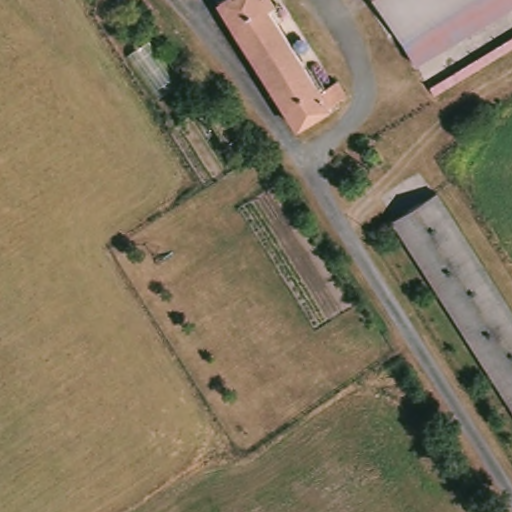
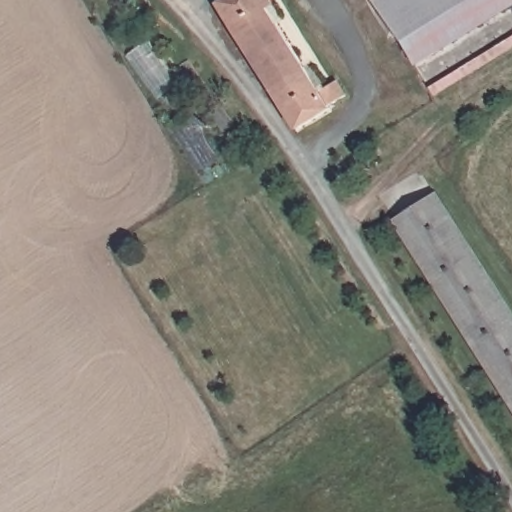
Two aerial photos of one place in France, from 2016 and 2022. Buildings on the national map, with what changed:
unchanged [(275,0),(270,3),(321,89),(333,81),(343,98),(330,105),(338,115),(301,136),(218,4),(225,0),(275,0)]
unchanged [(495,0),(407,46),(378,0),(495,0)]
unchanged [(407,46),(495,0),(512,0),(512,25),(424,72),(407,46)]
unchanged [(433,88),(512,39),(512,51),(436,95),(433,88)]
unchanged [(441,190),(512,307),(512,397),(398,213),(441,190)]

